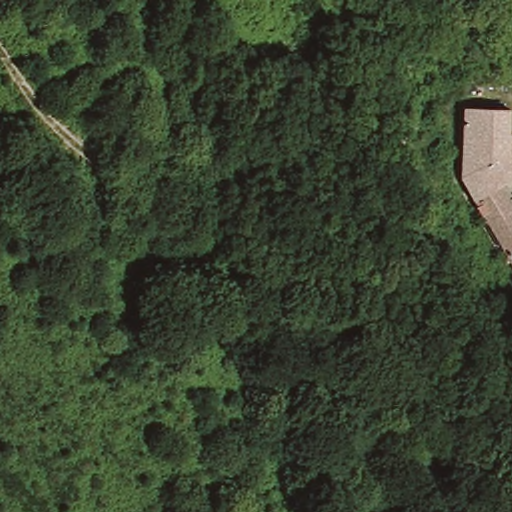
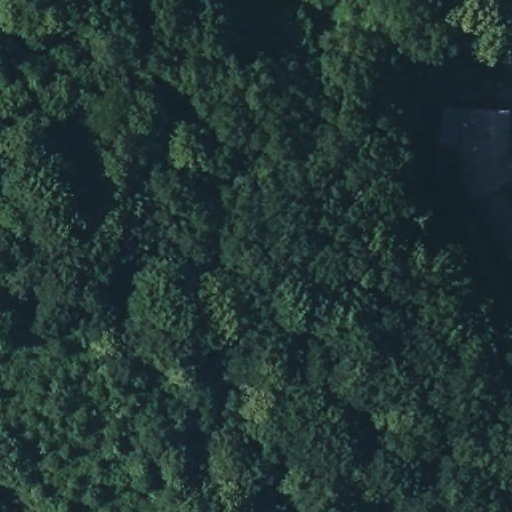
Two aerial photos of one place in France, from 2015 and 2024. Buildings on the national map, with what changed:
unchanged [(470,200),(460,177),(462,108),(510,109),(510,132),(512,133),(512,151),(510,151),(512,155),(512,179),(502,185),(470,200)]
unchanged [(512,203),(512,258),(505,261),(470,200),(502,185),(512,203)]
unchanged [(512,258),(512,274),(505,261),(512,258)]

